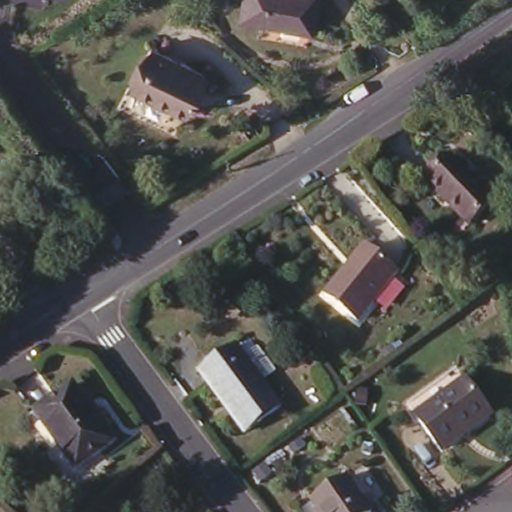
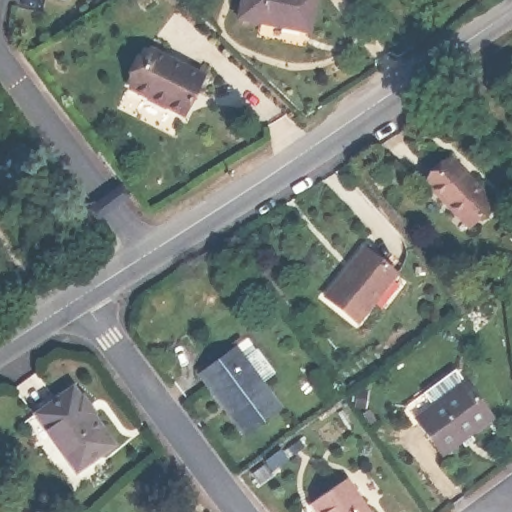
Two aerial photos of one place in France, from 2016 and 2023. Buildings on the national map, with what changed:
unchanged [(301,29),(237,16),(240,0),(314,0),(311,17),(308,31),(301,29)]
unchanged [(202,69),(184,107),(164,99),(163,101),(144,92),(145,90),(127,82),(147,42),(202,69)]
unchanged [(486,189),(461,213),(418,170),(443,146),(486,189)]
unchanged [(395,270),(356,318),(321,292),(360,243),(395,270)]
unchanged [(282,404),(245,432),(226,406),(229,403),(214,382),(210,385),(201,372),(237,345),(282,404)]
unchanged [(488,412),(439,448),(412,415),(463,378),(488,412)]
unchanged [(75,395),(77,392),(85,402),(82,405),(108,439),(73,466),(30,410),(66,382),(75,395)]
unchanged [(369,512),(318,512),(310,501),(345,477),(370,512),(369,512)]

